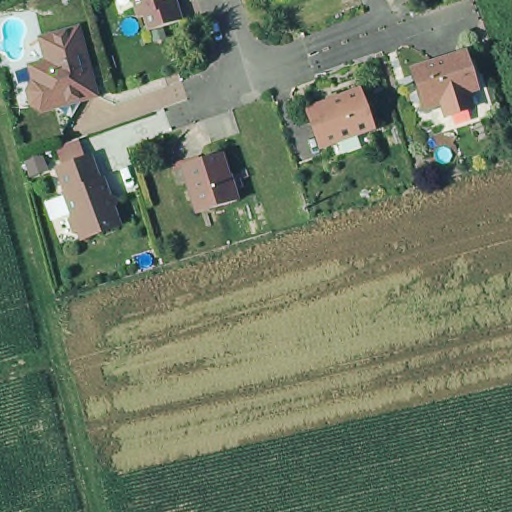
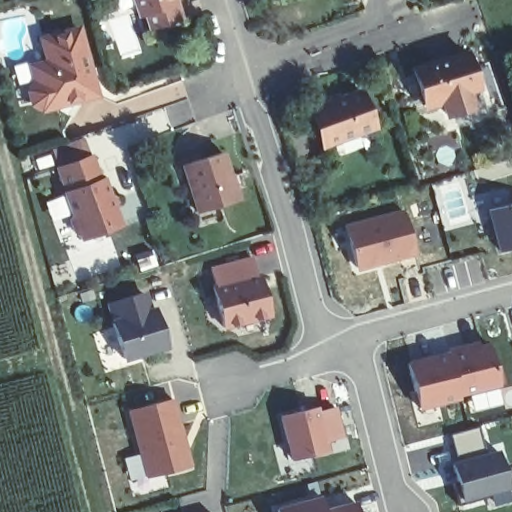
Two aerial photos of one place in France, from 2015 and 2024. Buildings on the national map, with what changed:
unchanged [(186,19),(153,29),(149,15),(143,17),(138,0),(180,0),(186,19)]
unchanged [(46,104),(36,98),(32,85),(39,74),(35,60),(53,55),(47,33),(82,23),(100,89),(46,104)]
unchanged [(446,110),(441,94),(423,99),(413,64),(465,48),(472,71),(476,83),(466,86),(471,102),(446,110)]
unchanged [(377,122),(330,139),(317,102),(364,85),(377,122)]
unchanged [(186,159),(227,147),(241,194),(211,204),(201,207),(186,159)]
unchanged [(62,162),(95,151),(104,174),(107,174),(113,189),(121,192),(122,196),(118,202),(124,219),(86,233),(85,229),(79,226),(74,213),(77,206),(62,162)]
demolished [(41,153),(46,167),(30,173),(25,159),(41,153)]
new [(486,209),(512,202),(512,248),(498,251),(486,209)]
new [(344,225),(404,208),(417,255),(358,271),(344,225)]
new [(258,275),(261,274),(273,317),(224,330),(212,284),(215,283),(211,266),(253,255),(258,275)]
new [(125,357),(109,303),(145,293),(150,310),(154,310),(159,326),(162,326),(168,344),(125,357)]
new [(491,344),(501,387),(463,396),(466,403),(421,413),(409,363),(491,344)]
new [(146,479),(127,410),(175,397),(194,465),(146,479)]
new [(328,440),(330,450),(291,460),(280,415),(319,405),(320,410),(337,405),(345,436),(328,440)]
new [(508,487),(485,493),(485,498),(459,505),(453,481),(457,480),(453,463),(499,451),(508,487)]
new [(277,512),(276,508),(321,496),(324,509),(357,500),(360,512),(277,512)]

